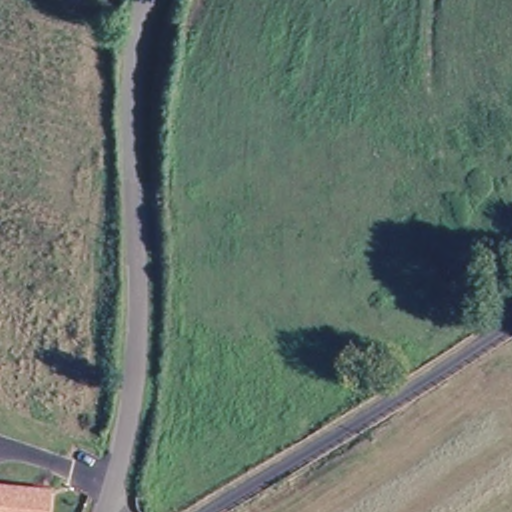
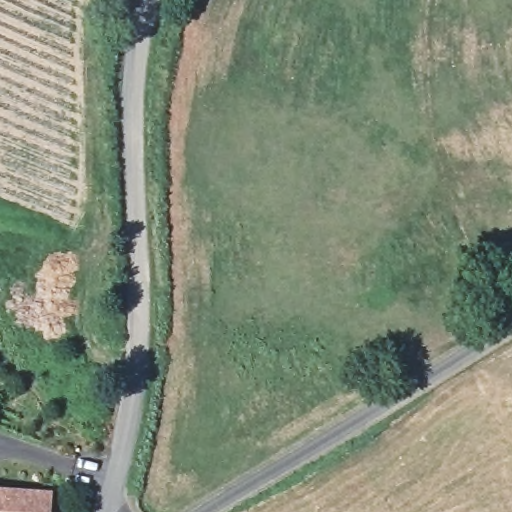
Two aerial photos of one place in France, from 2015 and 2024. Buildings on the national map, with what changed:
unchanged [(51,512),(0,512),(0,489),(53,493),(51,512)]

